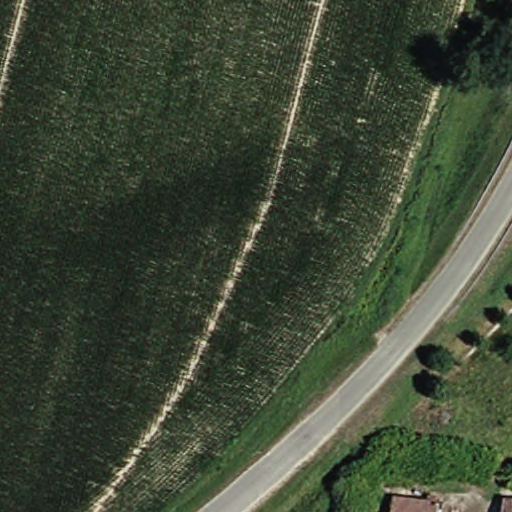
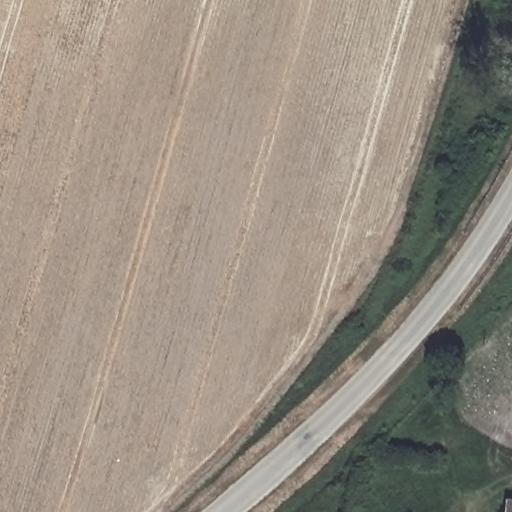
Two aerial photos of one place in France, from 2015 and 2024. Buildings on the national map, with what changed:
demolished [(388,501),(440,508),(439,512),(387,512),(388,501)]
unchanged [(507,503),(512,504),(512,512),(506,512),(507,503)]

